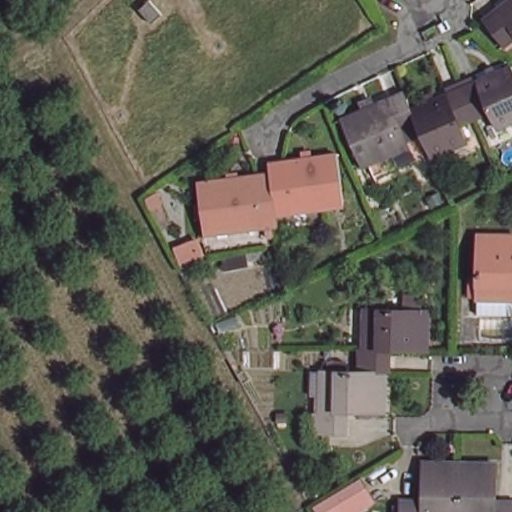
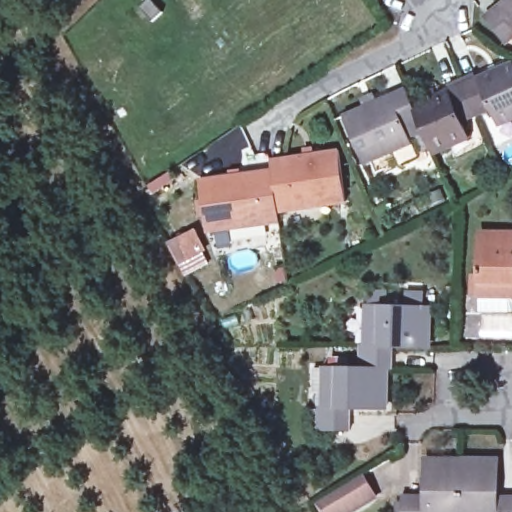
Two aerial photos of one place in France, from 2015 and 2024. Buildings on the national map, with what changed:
unchanged [(154,8),(140,18),(128,5),(135,0),(145,0),(154,8)]
unchanged [(487,11),(502,0),(512,0),(512,40),(510,42),(487,11)]
unchanged [(512,55),(512,112),(512,111),(497,115),(493,106),(478,111),(464,75),(512,55)]
unchanged [(460,117),(464,129),(448,134),(450,141),(431,148),(417,116),(409,97),(464,75),(478,111),(460,117)]
unchanged [(397,123),(403,142),(357,159),(339,110),(404,85),(409,97),(417,116),(397,123)]
unchanged [(268,170),(266,157),(332,149),(339,203),(309,208),(308,199),(271,205),(268,170)]
unchanged [(272,209),(273,220),(254,223),(252,218),(232,220),(232,226),(198,229),(192,178),(268,170),(271,205),(272,209)]
unchanged [(509,287),(473,286),(473,223),(509,223),(509,262),(512,262),(512,292),(509,292),(509,287)]
unchanged [(189,253),(177,260),(170,247),(182,240),(189,253)]
unchanged [(317,409),(324,409),(325,368),(364,368),(363,347),(365,307),(426,308),(426,346),(387,347),(387,367),(385,410),(343,410),(343,432),(316,431),(317,409)]
unchanged [(423,499),(425,458),(464,457),(464,487),(464,512),(403,512),(403,499),(423,499)]
unchanged [(464,457),(495,457),(496,498),(512,498),(512,512),(464,512),(464,487),(464,457)]
unchanged [(363,477),(377,501),(358,512),(320,512),(316,505),(363,477)]

